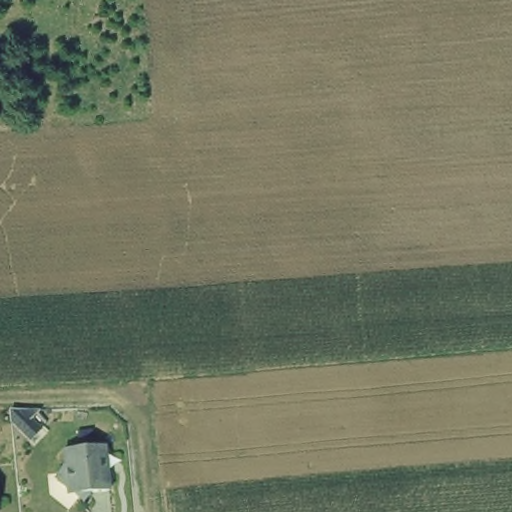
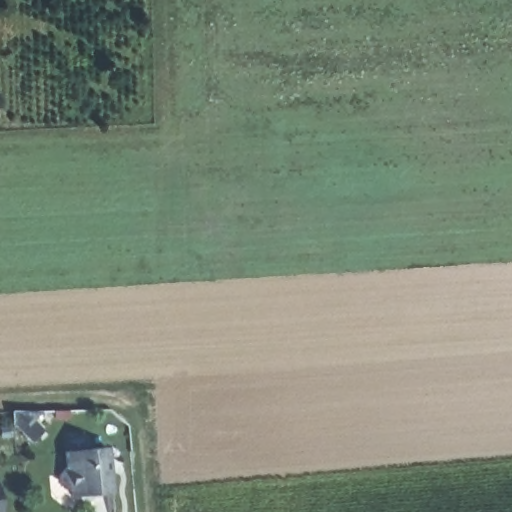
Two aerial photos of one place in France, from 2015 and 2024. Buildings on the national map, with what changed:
unchanged [(60,451),(101,447),(105,491),(87,493),(80,502),(56,482),(55,474),(62,465),(60,451)]

